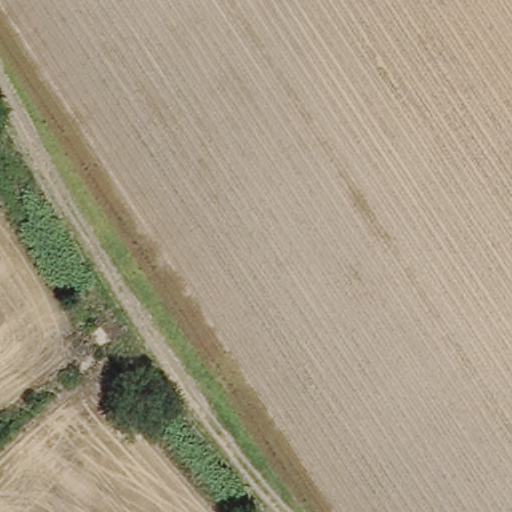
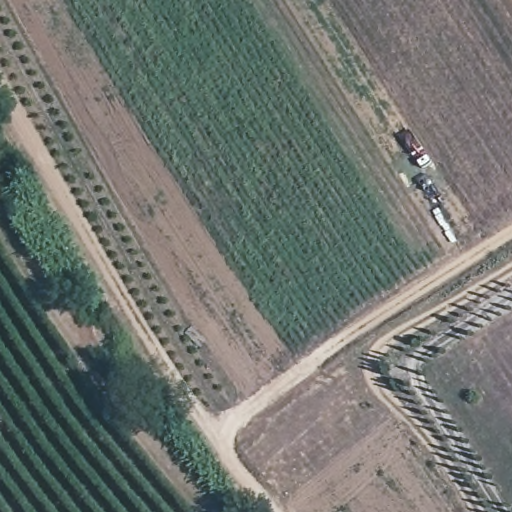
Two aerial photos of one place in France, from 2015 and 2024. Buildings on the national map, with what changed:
[]

